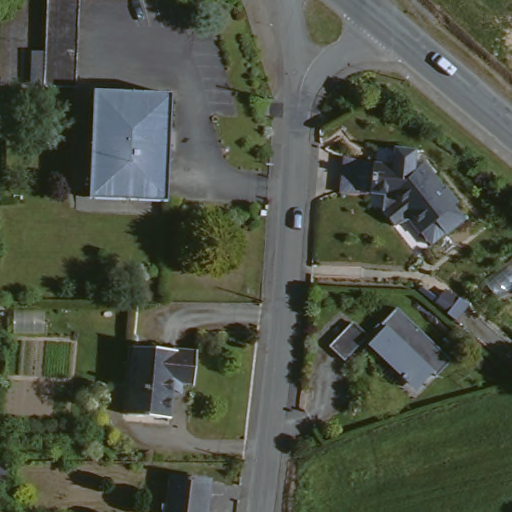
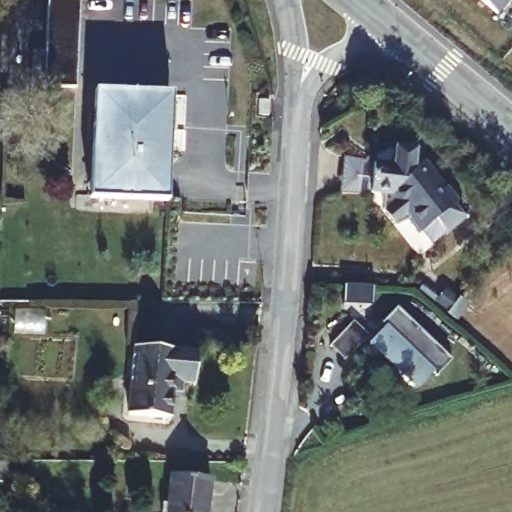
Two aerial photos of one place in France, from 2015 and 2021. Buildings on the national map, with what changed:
unchanged [(40,87),(40,0),(74,0),(74,87),(40,87)]
new [(497,13),(482,0),(508,0),(497,13)]
unchanged [(91,201),(92,97),(168,97),(167,202),(91,201)]
unchanged [(390,165),(393,149),(413,152),(411,163),(419,163),(443,194),(445,193),(456,207),(452,210),(462,224),(444,238),(433,223),(416,236),(406,222),(390,229),(377,214),(380,195),(368,193),(373,163),(390,165)]
unchanged [(444,298),(454,287),(465,296),(472,303),(461,316),(454,309),(455,307),(444,298)]
unchanged [(449,366),(433,382),(428,378),(414,392),(405,384),(403,386),(398,382),(401,379),(369,347),(383,333),(378,328),(395,312),(449,366)]
unchanged [(351,325),(365,339),(341,362),(328,348),(351,325)]
unchanged [(123,419),(130,350),(194,356),(192,386),(170,384),(166,422),(123,419)]
unchanged [(11,455),(11,475),(0,475),(0,455),(11,455)]
unchanged [(169,509),(172,480),(212,484),(209,512),(163,512),(164,509),(169,509)]

